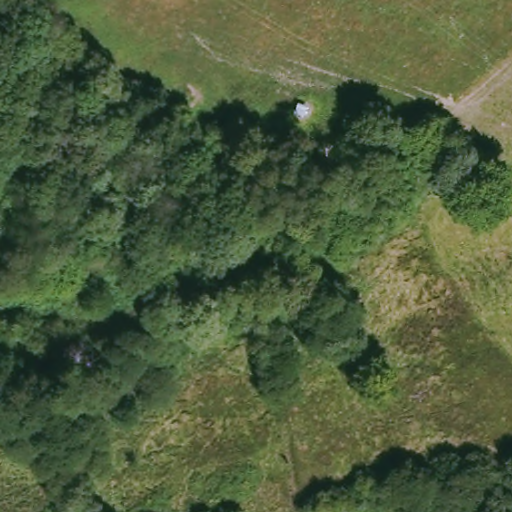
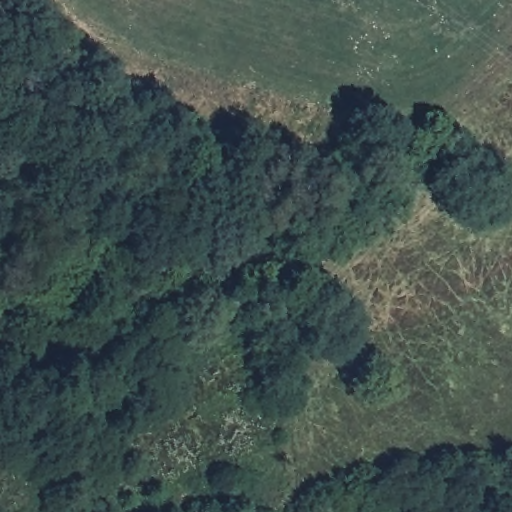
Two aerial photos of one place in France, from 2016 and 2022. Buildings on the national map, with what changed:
[]

